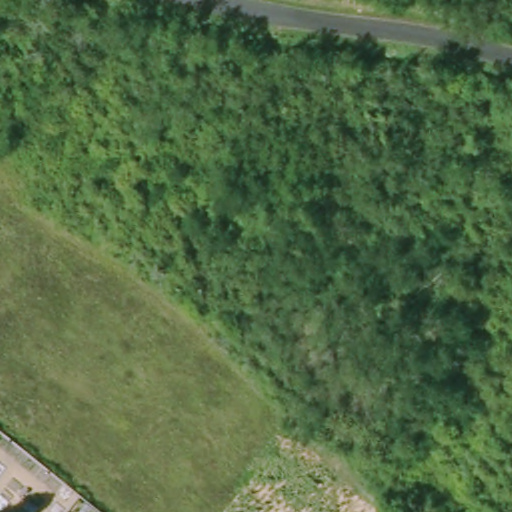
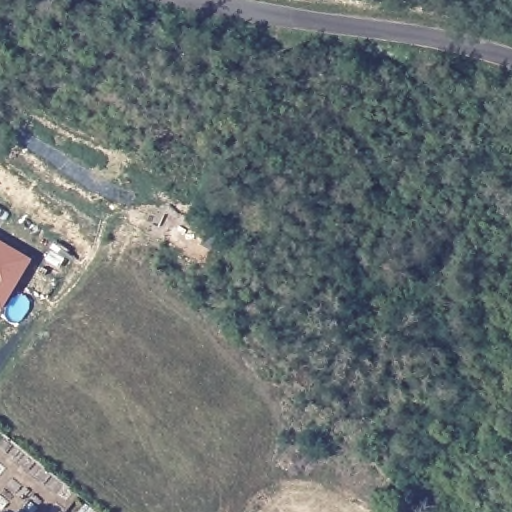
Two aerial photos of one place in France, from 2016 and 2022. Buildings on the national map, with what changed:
new [(0,310),(0,241),(32,260),(2,311),(0,310)]

